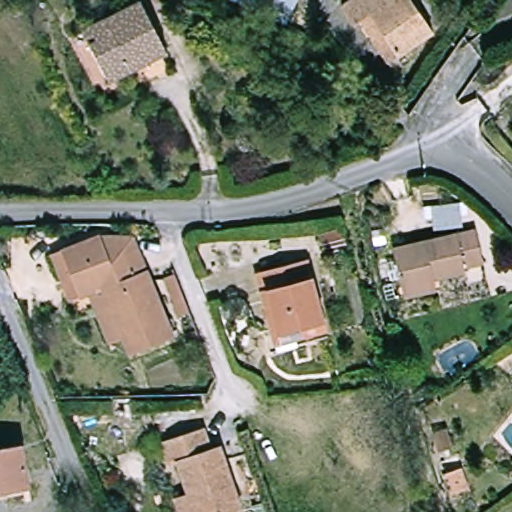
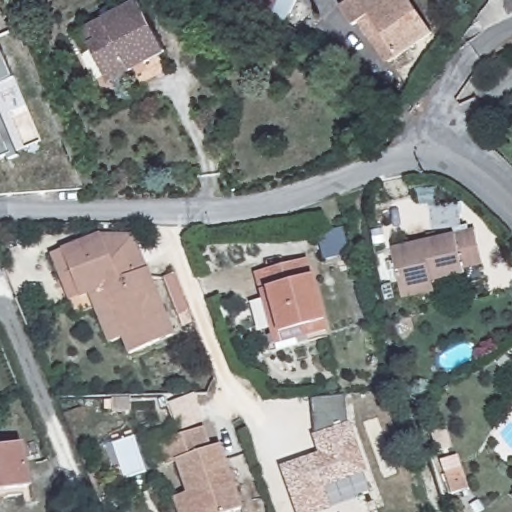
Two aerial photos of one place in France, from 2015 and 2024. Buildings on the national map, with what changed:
unchanged [(111,79),(85,27),(139,0),(145,0),(170,49),(111,79)]
unchanged [(243,0),(297,0),(286,20),(243,0)]
unchanged [(344,3),(348,0),(412,0),(433,30),(392,58),(364,17),(356,22),(344,3)]
new [(0,80),(0,48),(11,75),(0,80)]
new [(5,154),(0,156),(0,117),(16,155),(8,159),(5,154)]
unchanged [(455,202),(459,225),(434,229),(431,206),(455,202)]
unchanged [(406,296),(404,288),(395,249),(479,229),(487,262),(467,267),(468,273),(436,281),(438,289),(406,296)]
unchanged [(344,250),(322,255),(317,237),(339,231),(344,250)]
unchanged [(175,332),(131,350),(125,335),(112,340),(93,290),(73,298),(55,252),(103,233),(136,234),(175,332)]
unchanged [(309,263),(329,333),(278,347),(258,277),(309,263)]
unchanged [(187,314),(177,317),(163,280),(173,276),(187,314)]
new [(315,437),(311,398),(345,395),(348,425),(365,471),(322,487),(330,508),(318,512),(298,512),(282,468),(311,458),(321,455),(315,437)]
new [(171,403),(190,397),(201,431),(182,437),(171,403)]
unchanged [(178,501),(191,497),(180,464),(170,467),(163,446),(206,431),(213,451),(223,447),(244,511),(242,512),(181,512),(178,501)]
unchanged [(33,485),(0,490),(0,446),(26,441),(33,485)]
unchanged [(459,468),(466,489),(450,495),(443,473),(459,468)]

